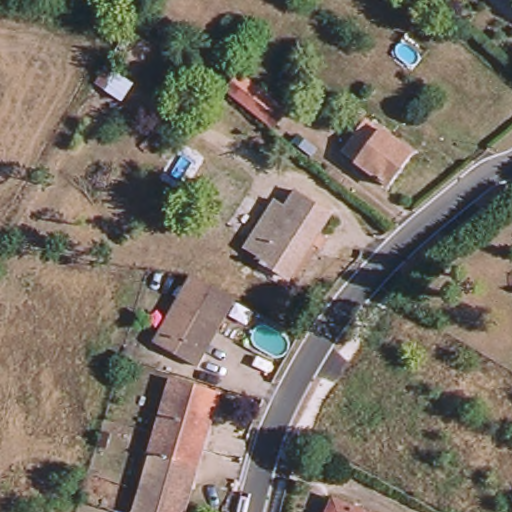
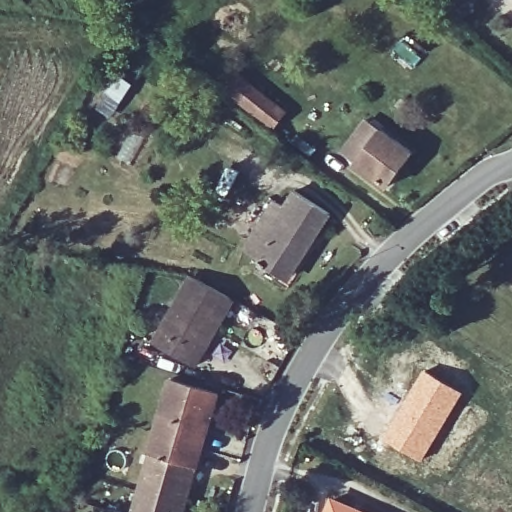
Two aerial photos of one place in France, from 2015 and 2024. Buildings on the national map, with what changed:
unchanged [(122,31),(128,34),(112,63),(126,71),(114,92),(94,80),(121,34),(122,31)]
unchanged [(221,92),(229,81),(219,74),(225,66),(283,109),(269,129),(221,92)]
unchanged [(350,162),(376,127),(409,152),(383,187),(350,162)]
unchanged [(248,245),(274,206),(279,205),(289,212),(300,193),(330,211),(315,236),(309,233),(282,273),(261,260),(259,252),(248,245)]
unchanged [(190,363),(147,340),(180,288),(189,275),(228,298),(223,306),(190,363)]
new [(423,369),(463,392),(422,462),(382,438),(423,369)]
unchanged [(149,437),(165,381),(212,394),(196,450),(149,437)]
unchanged [(179,506),(133,492),(149,437),(196,450),(179,506)]
unchanged [(133,492),(179,506),(177,512),(126,512),(133,492)]
unchanged [(314,497),(351,512),(308,512),(314,497)]

